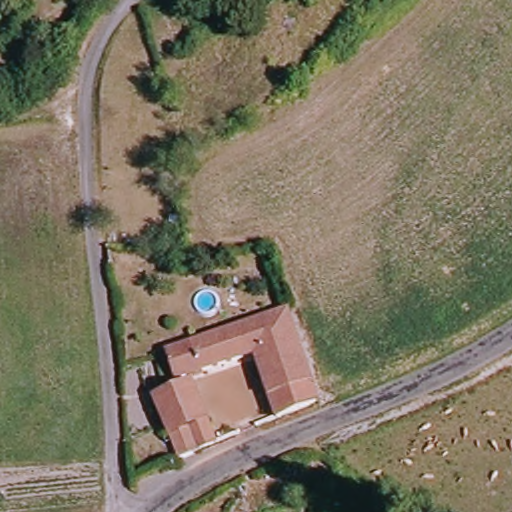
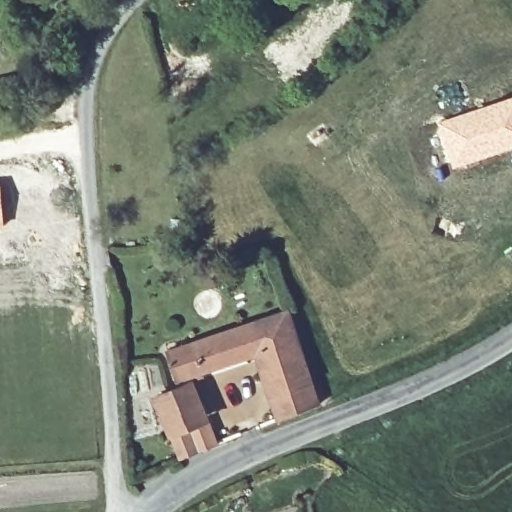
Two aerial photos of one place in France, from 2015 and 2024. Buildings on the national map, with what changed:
new [(512,95),(512,148),(509,149),(451,168),(434,121),(512,95)]
new [(4,227),(0,228),(0,184),(0,183),(4,227)]
unchanged [(279,426),(255,360),(174,384),(165,357),(287,318),(319,410),(279,426)]
unchanged [(179,464),(156,405),(191,391),(215,451),(179,464)]

